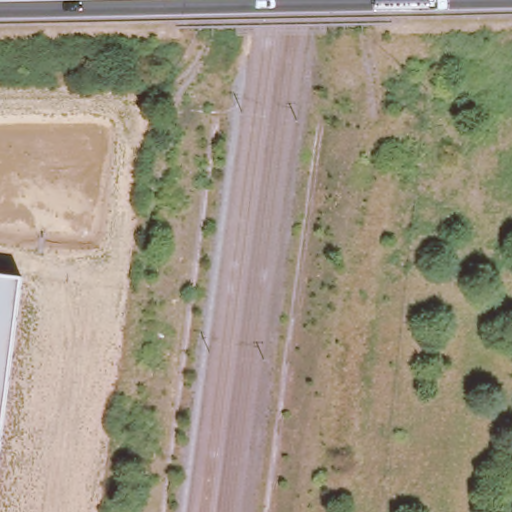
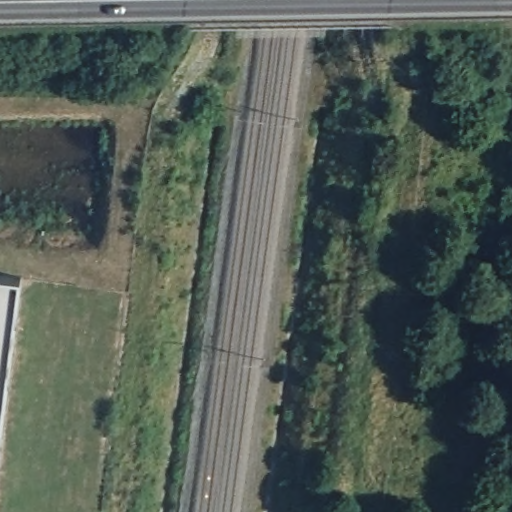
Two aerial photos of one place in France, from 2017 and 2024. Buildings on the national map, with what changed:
unchanged [(0,451),(0,273),(22,276),(0,451)]

